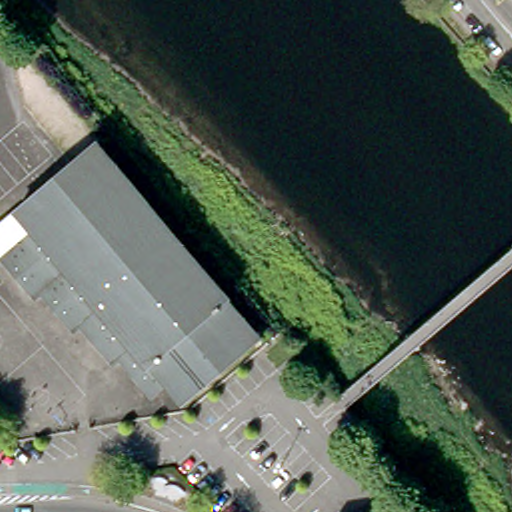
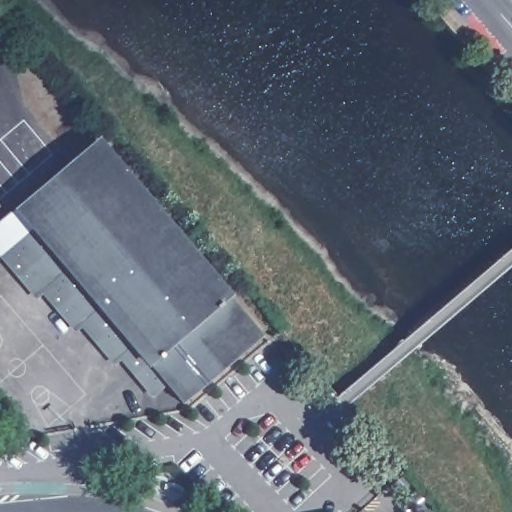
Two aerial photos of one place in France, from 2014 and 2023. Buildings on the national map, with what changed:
unchanged [(142,196),(198,261),(228,296),(226,299),(260,338),(217,375),(182,405),(165,384),(150,396),(117,356),(111,362),(78,323),(71,329),(38,290),(33,295),(0,256),(33,229),(17,210),(96,142),(142,196)]

